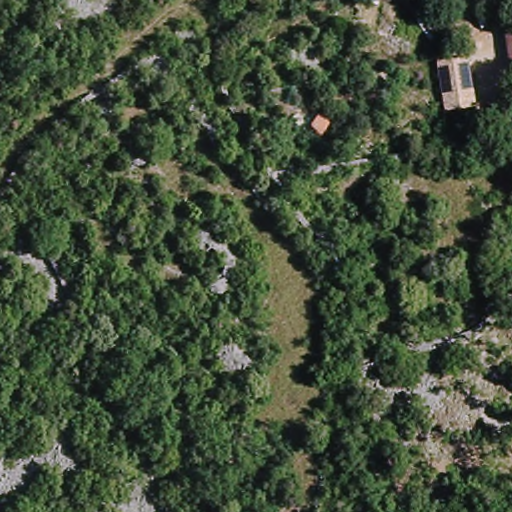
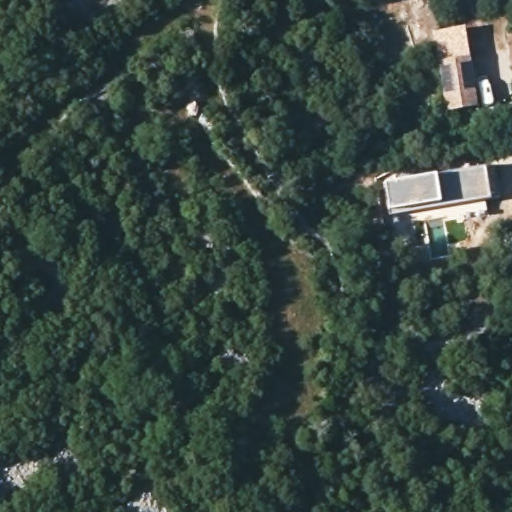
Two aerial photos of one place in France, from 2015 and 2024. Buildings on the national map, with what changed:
unchanged [(507,39),(512,38),(512,73),(507,39)]
unchanged [(475,55),(480,106),(442,113),(435,59),(475,55)]
new [(484,166),(490,199),(439,206),(434,173),(484,166)]
new [(434,173),(439,206),(387,214),(380,181),(434,173)]

